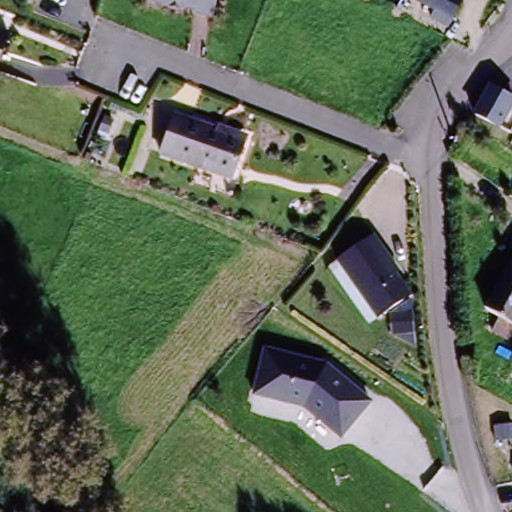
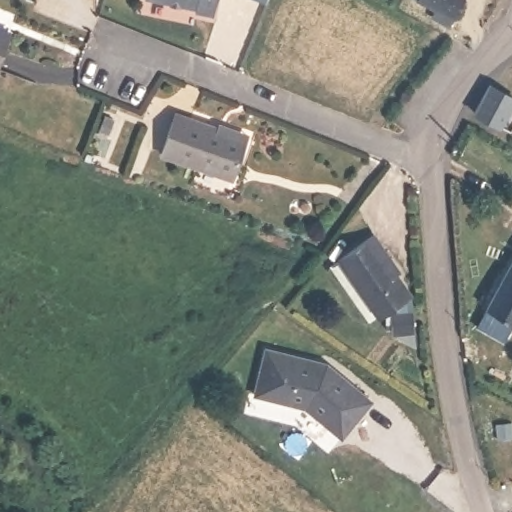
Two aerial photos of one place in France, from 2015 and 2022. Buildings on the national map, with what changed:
unchanged [(153,0),(213,0),(211,14),(187,10),(187,6),(153,0)]
unchanged [(458,26),(443,20),(447,9),(430,2),(431,0),(467,0),(458,26)]
unchanged [(9,39),(0,63),(0,36),(9,39)]
unchanged [(512,134),(507,142),(482,126),(486,121),(474,112),(489,91),(512,106),(512,134)]
unchanged [(250,147),(237,185),(166,160),(180,122),(250,147)]
unchanged [(512,141),(512,146),(510,145),(512,141)]
unchanged [(412,299),(393,309),(412,312),(414,337),(391,337),(388,313),(375,322),(331,262),(374,236),(412,299)]
unchanged [(512,329),(508,335),(495,326),(502,314),(493,307),(512,277),(512,329)]
unchanged [(268,345),(322,359),(373,400),(345,437),(307,405),(257,392),(268,345)]

